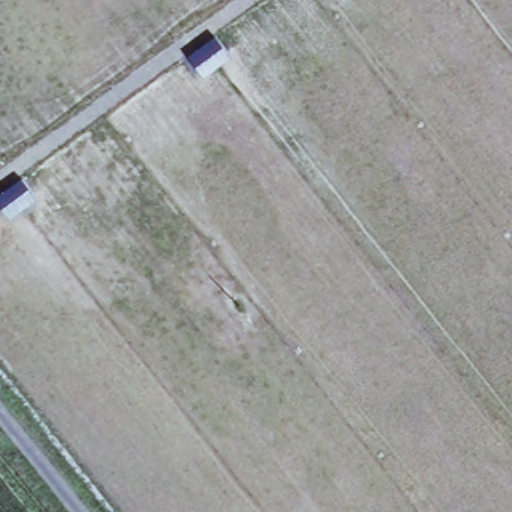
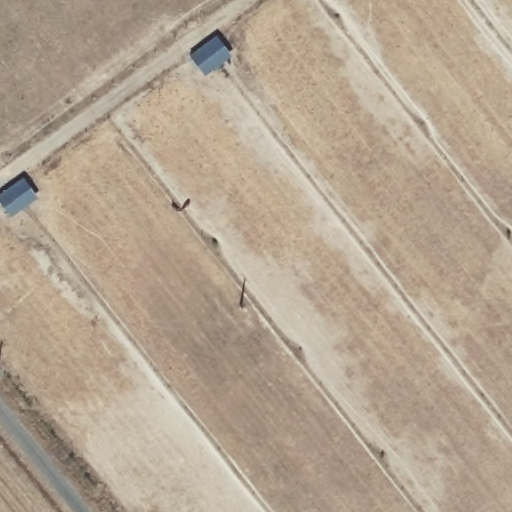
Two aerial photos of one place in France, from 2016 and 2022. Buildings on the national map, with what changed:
unchanged [(190,56),(216,37),(232,57),(205,76),(190,56)]
unchanged [(39,199),(12,218),(0,201),(0,194),(24,177),(39,199)]

